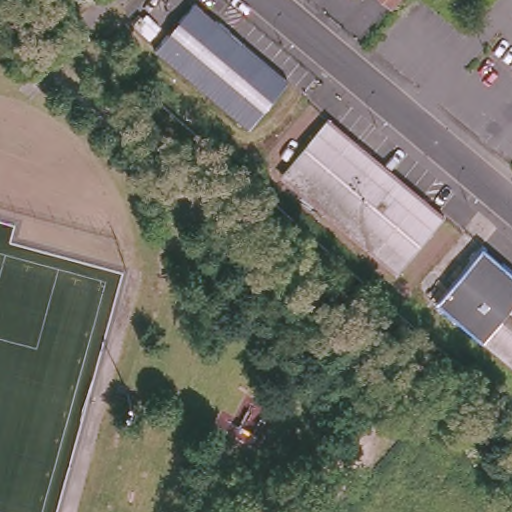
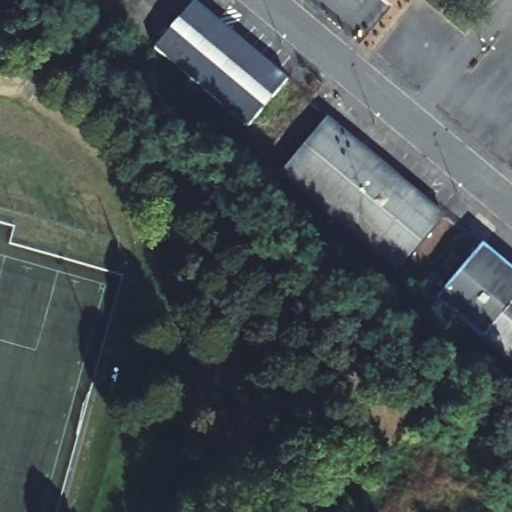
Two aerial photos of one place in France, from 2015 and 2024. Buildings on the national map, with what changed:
unchanged [(248,126),(155,49),(195,0),(289,79),(248,126)]
unchanged [(399,0),(392,8),(383,0),(399,0)]
unchanged [(396,270),(280,171),(327,116),(442,215),(396,270)]
unchanged [(481,247),(512,272),(512,300),(480,339),(435,302),(481,247)]
unchanged [(512,300),(512,366),(480,339),(512,300)]

